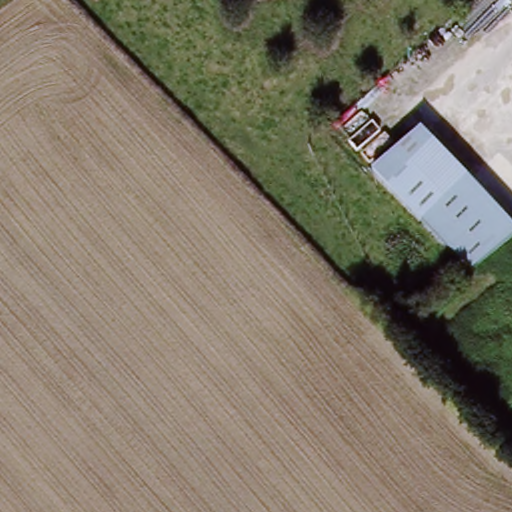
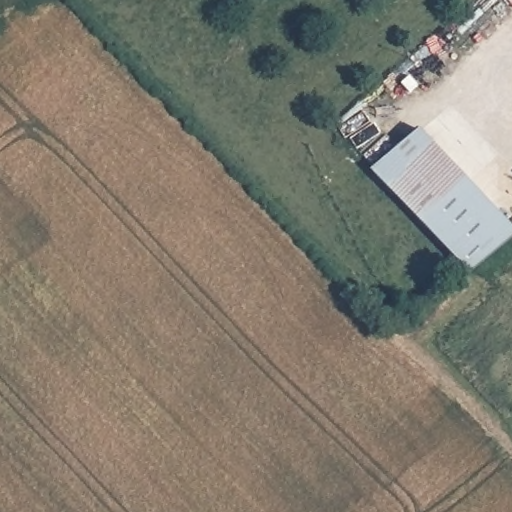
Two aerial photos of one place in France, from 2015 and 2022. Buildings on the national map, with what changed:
unchanged [(422,129),(473,182),(423,223),(373,169),(422,129)]
unchanged [(512,238),(473,275),(423,223),(473,182),(512,224),(512,238)]

